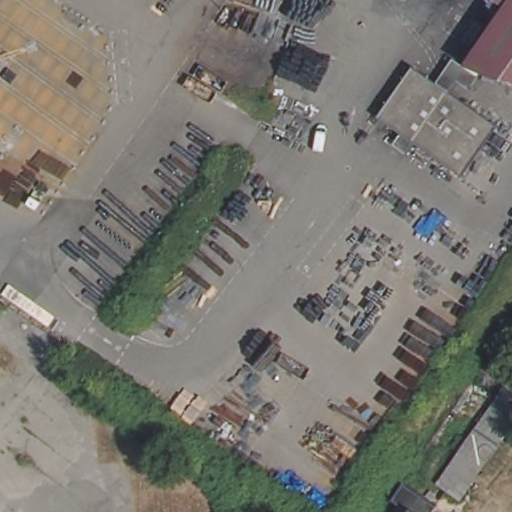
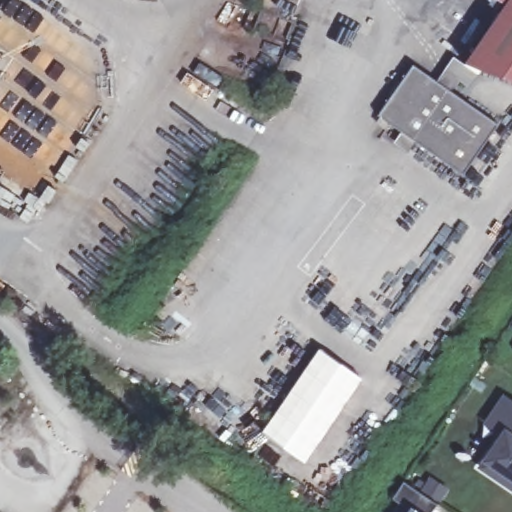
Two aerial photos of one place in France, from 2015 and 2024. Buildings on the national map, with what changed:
unchanged [(478,64),(463,59),(462,58),(502,1),(502,0),(512,0),(512,75),(478,64)]
unchanged [(502,0),(502,1),(500,0),(502,0)]
unchanged [(471,15),(482,21),(467,42),(456,36),(471,15)]
unchanged [(496,122),(460,173),(378,116),(414,64),(496,122)]
new [(319,349),(362,379),(306,462),(264,431),(319,349)]
demolished [(497,397),(512,375),(512,408),(497,397)]
new [(478,467),(482,460),(498,436),(484,424),(504,394),(512,400),(512,490),(478,467)]
unchanged [(407,512),(391,500),(404,483),(435,507),(432,512),(407,512)]

